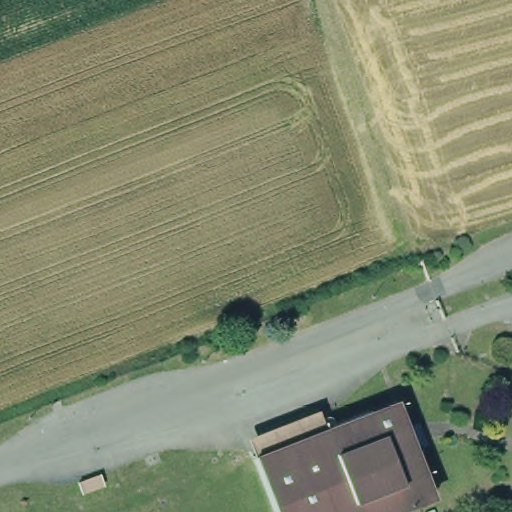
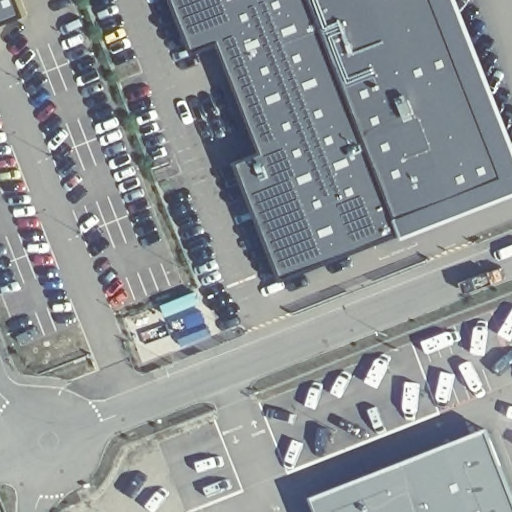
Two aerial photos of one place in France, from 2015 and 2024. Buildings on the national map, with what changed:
new [(0,28),(0,0),(28,0),(33,14),(0,28)]
new [(286,279),(240,161),(265,151),(223,43),(199,52),(178,0),(462,0),(512,129),(512,192),(408,233),(407,229),(286,279)]
demolished [(387,512),(274,512),(251,454),(393,401),(402,424),(415,419),(425,442),(412,448),(430,496),(387,512)]
new [(492,433),(512,484),(512,512),(319,512),(315,503),(492,433)]

